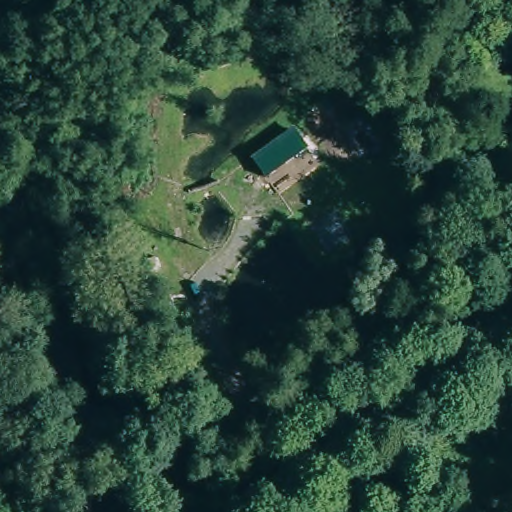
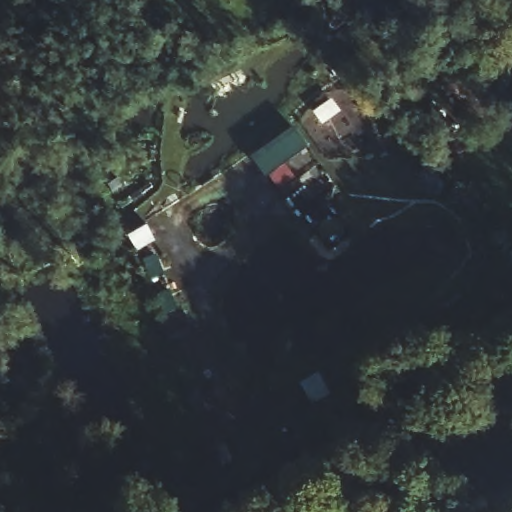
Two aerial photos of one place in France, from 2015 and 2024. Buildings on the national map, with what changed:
unchanged [(307,149),(265,176),(252,155),(294,126),(307,149)]

